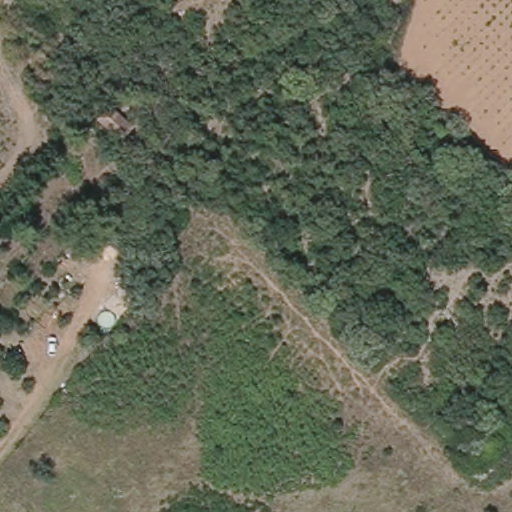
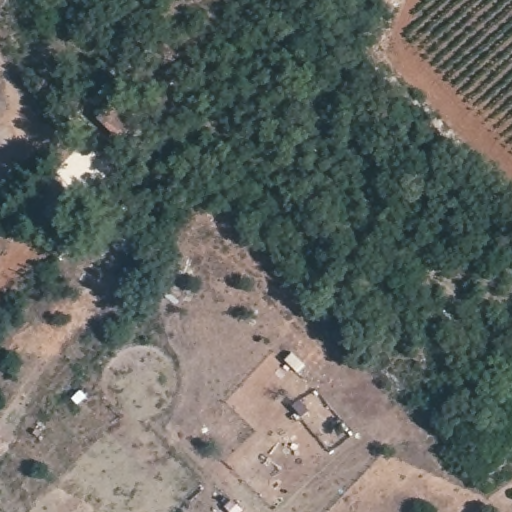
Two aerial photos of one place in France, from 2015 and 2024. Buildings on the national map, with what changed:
unchanged [(132,130),(120,143),(97,122),(110,109),(132,130)]

